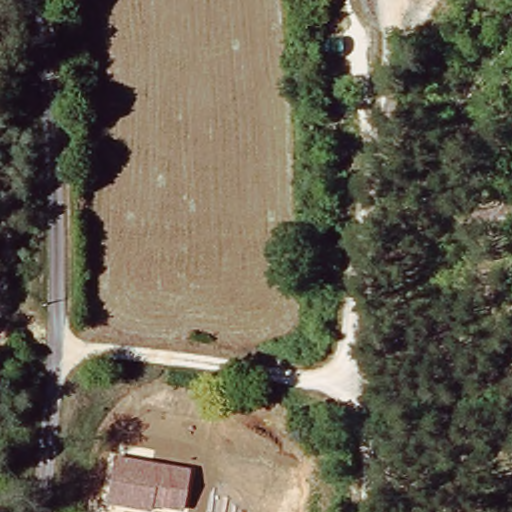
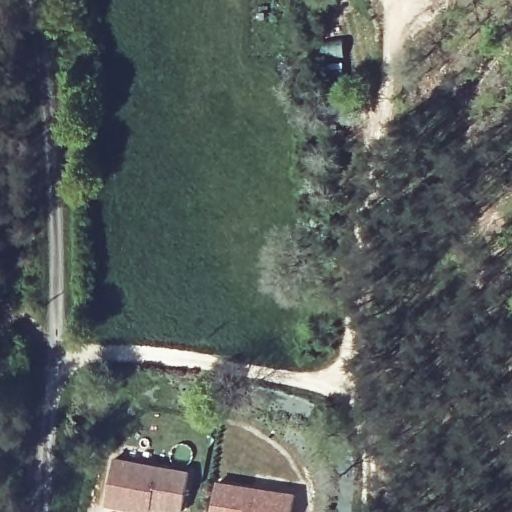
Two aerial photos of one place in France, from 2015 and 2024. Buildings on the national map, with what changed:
unchanged [(182,511),(152,506),(151,512),(146,512),(107,503),(114,457),(189,471),(182,511)]
new [(294,494),(292,512),(214,512),(220,480),(294,494)]

